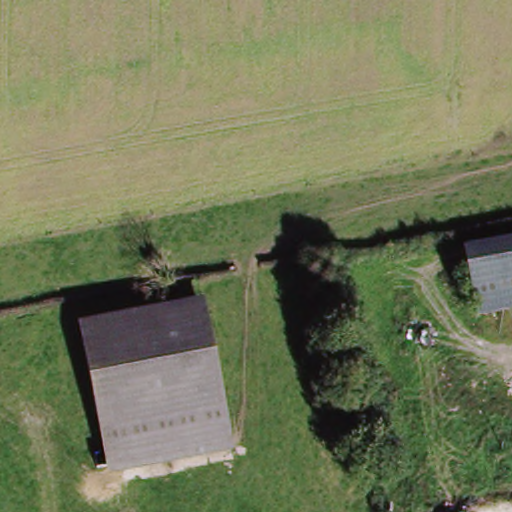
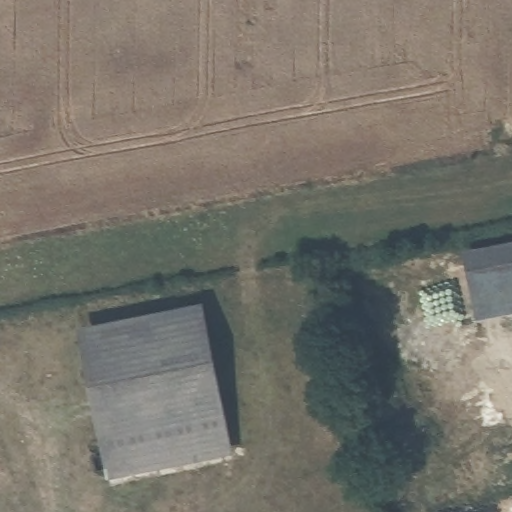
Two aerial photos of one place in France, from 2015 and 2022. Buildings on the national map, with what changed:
unchanged [(512,242),(512,293),(470,301),(458,252),(512,242)]
unchanged [(104,458),(77,337),(200,312),(227,433),(104,458)]

